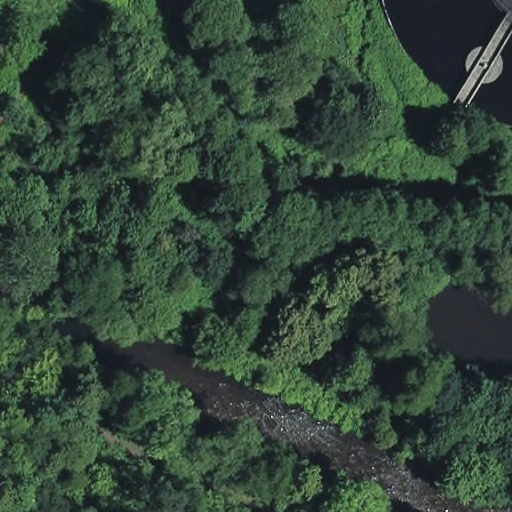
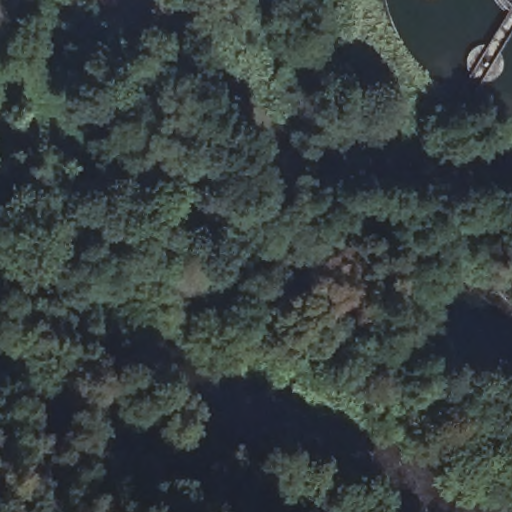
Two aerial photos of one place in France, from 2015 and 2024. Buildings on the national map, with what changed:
unchanged [(317,123),(321,103),(337,106),(332,126),(317,123)]

